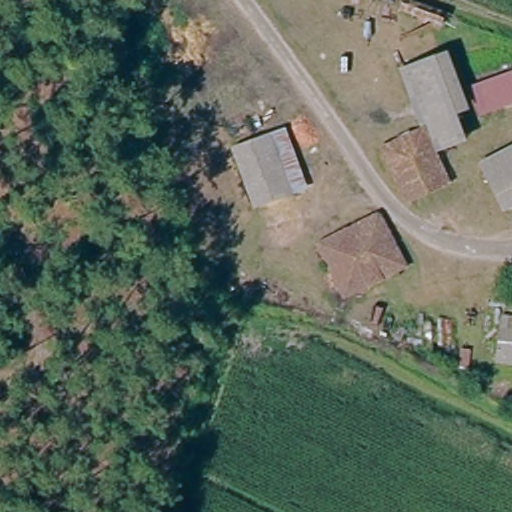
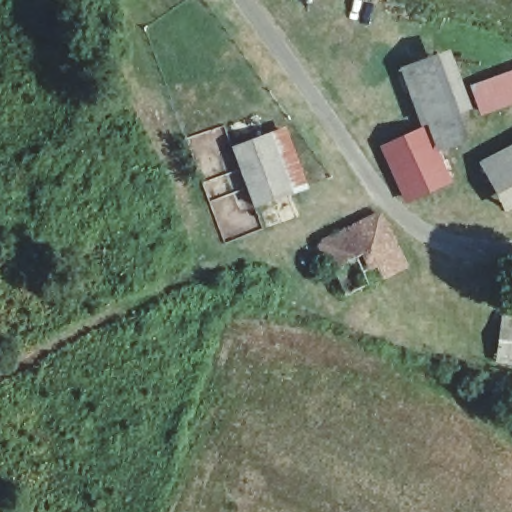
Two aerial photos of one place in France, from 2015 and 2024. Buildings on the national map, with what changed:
unchanged [(415,61),(443,51),(466,110),(456,116),(463,142),(433,154),(450,187),(403,207),(376,148),(417,129),(395,69),(415,61)]
unchanged [(470,87),(512,71),(512,106),(478,116),(470,87)]
unchanged [(271,130),(298,189),(258,204),(235,146),(271,130)]
unchanged [(485,201),(500,194),(486,160),(512,147),(512,207),(493,218),(485,201)]
unchanged [(377,216),(403,270),(342,305),(305,251),(377,216)]
unchanged [(512,369),(490,366),(495,328),(512,330),(512,369)]

